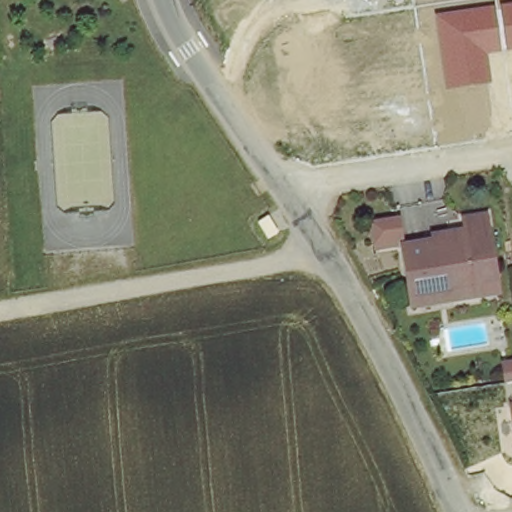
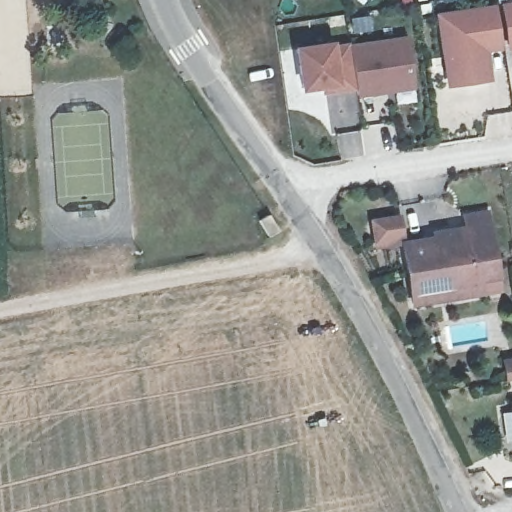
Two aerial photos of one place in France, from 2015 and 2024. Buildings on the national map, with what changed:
unchanged [(512,2),(512,49),(507,49),(500,3),(512,2)]
unchanged [(494,5),(500,51),(487,52),(493,83),(446,89),(437,12),(494,5)]
new [(332,40),(333,44),(348,42),(348,44),(407,35),(413,90),(355,98),(355,90),(320,94),(321,88),(299,91),(292,46),(332,40)]
unchanged [(505,292),(408,304),(397,247),(372,248),(368,216),(398,211),(402,233),(458,225),(457,212),(488,208),(505,292)]
unchanged [(512,433),(508,403),(512,403),(512,433)]

